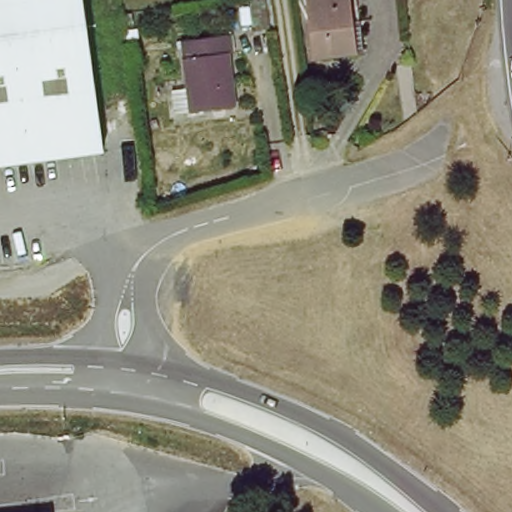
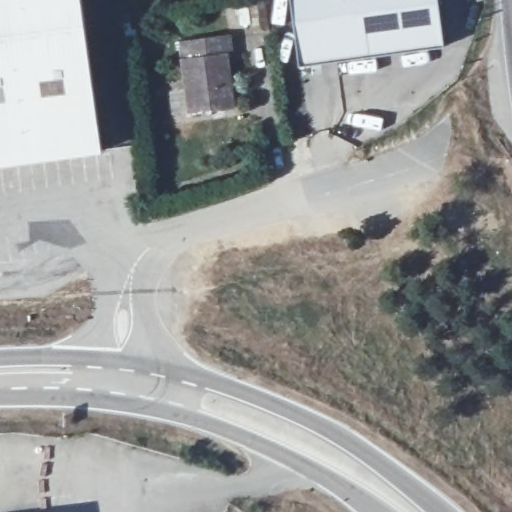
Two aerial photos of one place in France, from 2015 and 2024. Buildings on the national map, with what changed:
unchanged [(0,167),(0,0),(77,0),(98,154),(0,167)]
new [(294,56),(289,0),(433,0),(438,42),(294,56)]
demolished [(311,59),(305,0),(350,0),(356,54),(311,59)]
unchanged [(234,35),(236,52),(223,54),(229,107),(190,111),(183,40),(234,35)]

